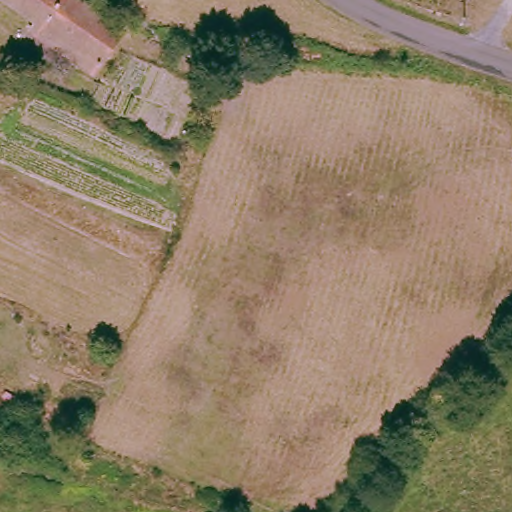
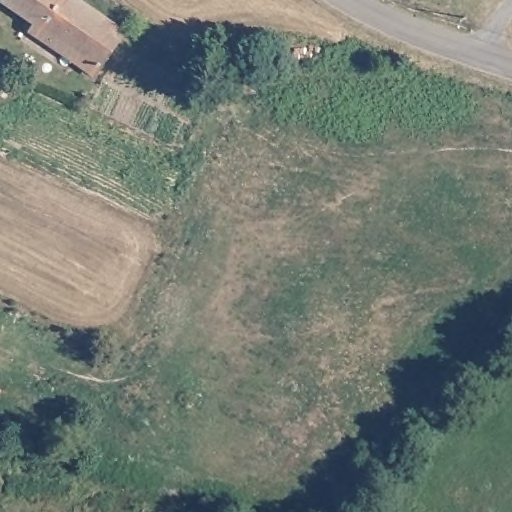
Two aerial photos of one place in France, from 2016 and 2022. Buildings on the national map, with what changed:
unchanged [(76,65),(83,54),(2,0),(81,0),(128,32),(98,79),(76,65)]

